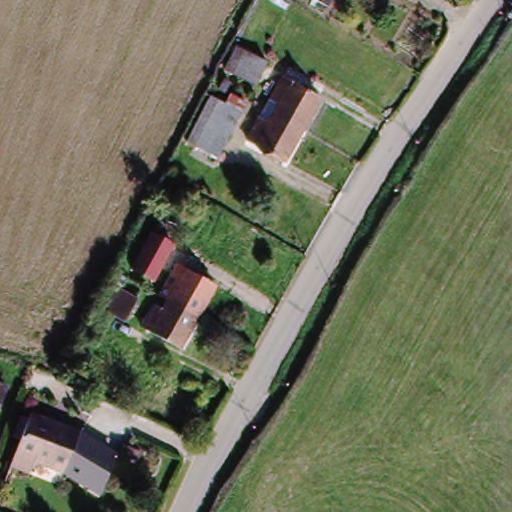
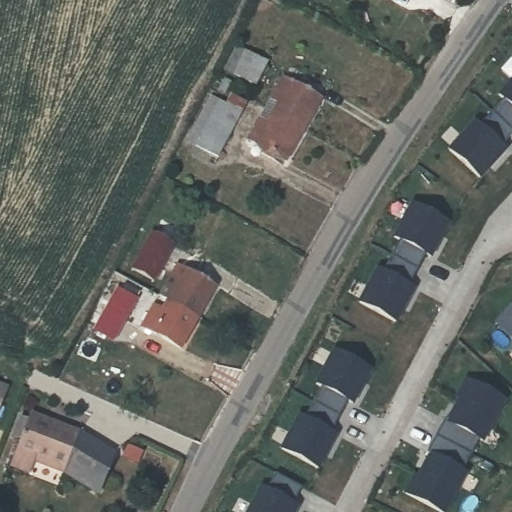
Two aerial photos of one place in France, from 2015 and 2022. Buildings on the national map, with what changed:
unchanged [(312,0),(330,0),(325,8),(312,0)]
unchanged [(256,85),(235,75),(227,70),(237,49),(246,53),(267,65),(256,85)]
unchanged [(279,103),(270,99),(282,80),(321,101),(304,132),(280,119),(273,115),(279,103)]
new [(474,126),(477,129),(500,102),(498,100),(512,84),(512,134),(499,149),(502,152),(480,178),(451,152),(474,126)]
unchanged [(222,152),(202,142),(194,137),(216,94),(225,99),(245,109),(222,152)]
unchanged [(280,119),(304,132),(287,162),(248,140),(259,121),(267,126),(273,115),(280,119)]
new [(379,266),(382,268),(399,237),(395,235),(412,205),(445,222),(430,253),(425,250),(408,282),(413,285),(397,315),(362,297),(379,266)]
unchanged [(115,282),(118,275),(121,269),(125,271),(129,265),(134,266),(144,247),(162,256),(156,267),(151,267),(141,285),(124,275),(122,277),(119,285),(115,282)]
unchanged [(177,308),(167,302),(159,298),(176,268),(214,288),(197,320),(177,308)]
unchanged [(137,300),(125,321),(109,312),(120,290),(137,300)]
unchanged [(181,347),(143,327),(153,310),(162,314),(167,302),(177,308),(197,320),(181,347)]
new [(512,304),(512,336),(496,321),(512,304)]
new [(305,406),(307,408),(325,377),(321,375),(337,345),(372,362),(355,393),(350,391),(334,422),(339,425),(322,455),(288,437),(305,406)]
unchanged [(0,409),(0,379),(10,384),(0,409)]
new [(412,478),(415,480),(428,457),(425,455),(442,422),(445,424),(458,401),(455,400),(464,381),(502,402),(480,444),(477,442),(460,473),(464,475),(444,512),(432,512),(402,496),(412,478)]
unchanged [(60,470),(29,457),(24,471),(5,465),(24,416),(26,411),(59,423),(75,430),(60,470)]
unchanged [(75,430),(115,455),(99,498),(60,470),(75,430)]
new [(259,491),(262,493),(271,477),(297,491),(289,507),(293,510),(292,512),(248,512),(259,491)]

